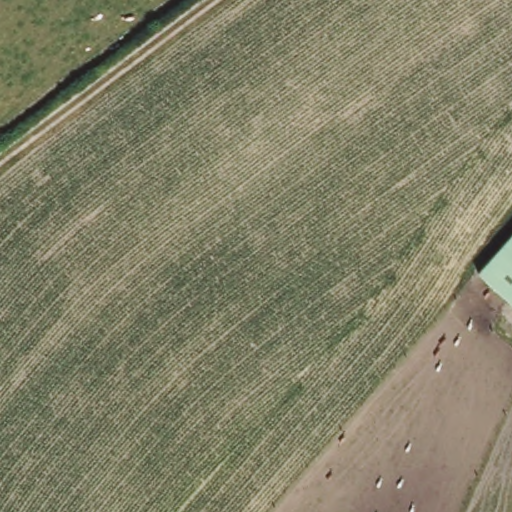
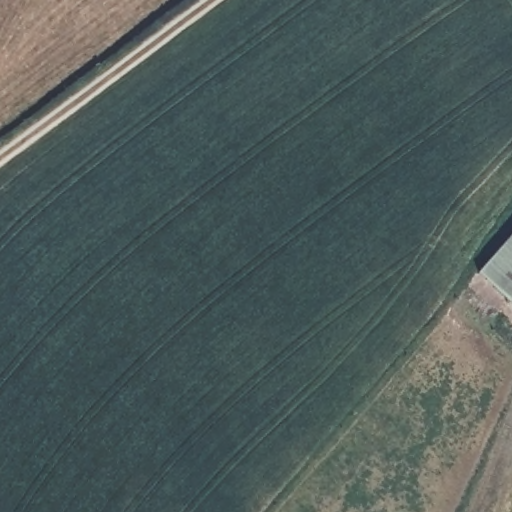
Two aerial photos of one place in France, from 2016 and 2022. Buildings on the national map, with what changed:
unchanged [(512,299),(476,270),(512,230),(512,299)]

